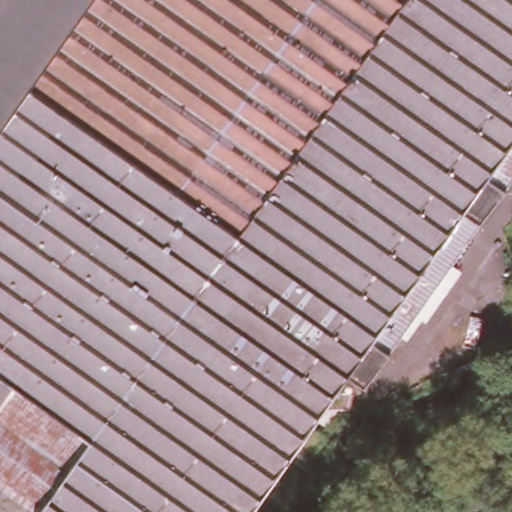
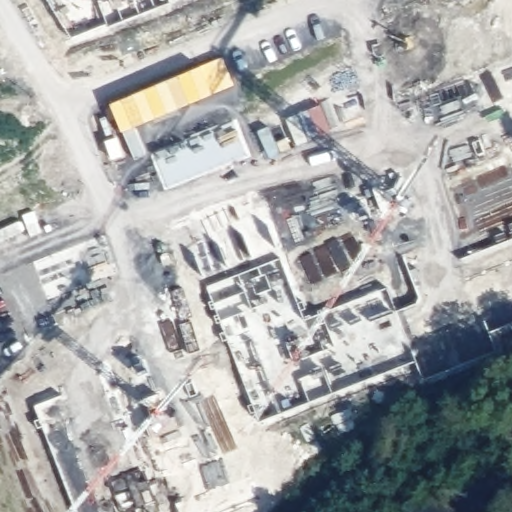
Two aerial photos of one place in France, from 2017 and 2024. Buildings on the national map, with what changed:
demolished [(32,81),(2,124),(0,126),(0,0),(89,0),(32,81)]
demolished [(2,124),(32,81),(89,0),(397,0),(92,431),(0,366),(0,126),(2,124)]
demolished [(35,512),(37,508),(45,498),(92,431),(397,0),(512,0),(512,137),(492,165),(510,178),(483,212),(467,200),(375,328),(393,342),(367,375),(350,363),(337,382),(353,380),(355,398),(324,401),(313,416),(328,426),(307,457),(292,446),(245,512),(35,512)]
new [(168,2),(107,24),(107,22),(72,37),(48,0),(168,0),(168,2)]
new [(512,323),(488,332),(495,350),(422,379),(415,360),(258,421),(205,285),(280,257),(304,317),(387,287),(396,310),(415,302),(417,295),(408,273),(460,258),(512,238),(512,323)]
demolished [(92,431),(45,498),(0,467),(0,366),(92,431)]

